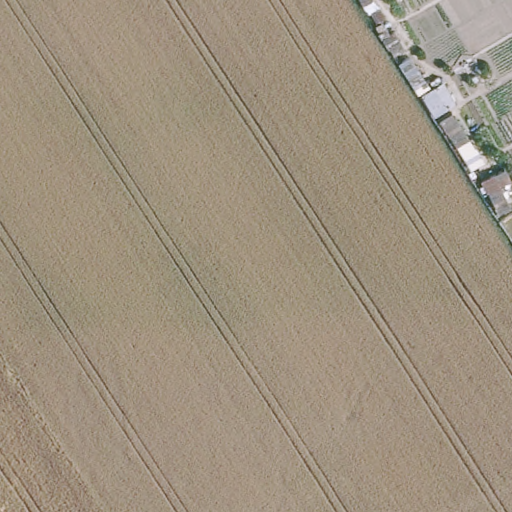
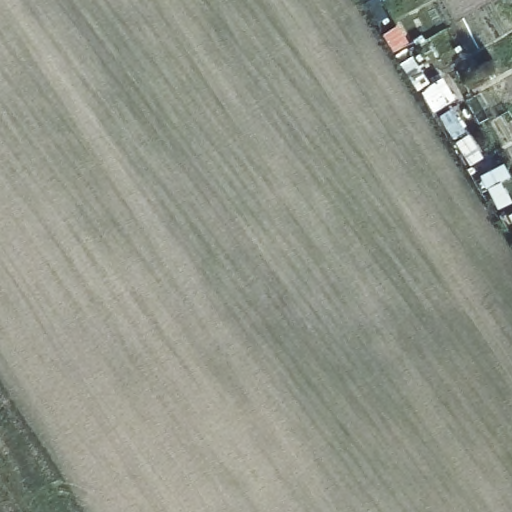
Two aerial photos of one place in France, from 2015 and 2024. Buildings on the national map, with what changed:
unchanged [(443,83),(454,100),(436,114),(422,95),(443,83)]
unchanged [(453,115),(480,159),(469,166),(440,121),(453,115)]

